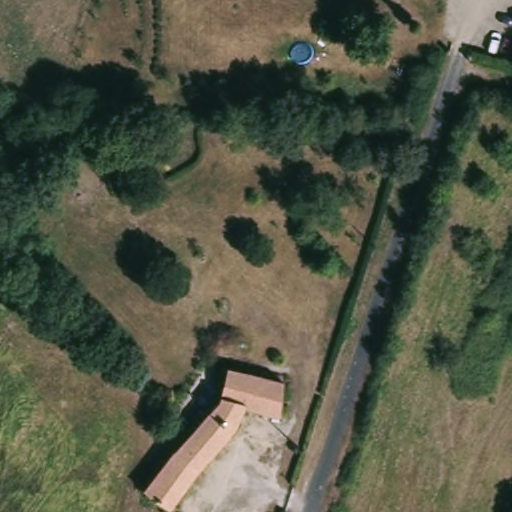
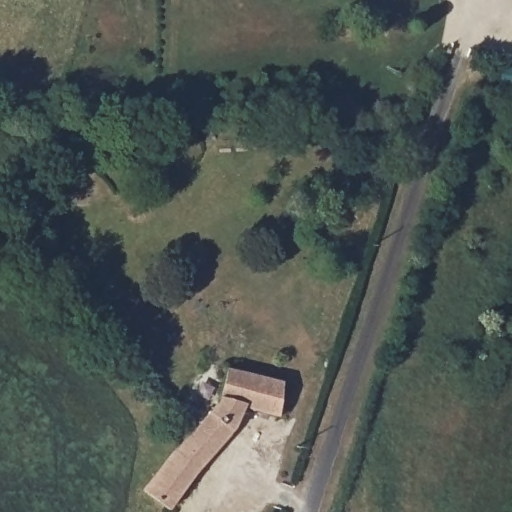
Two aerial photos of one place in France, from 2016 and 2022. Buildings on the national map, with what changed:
unchanged [(290,387),(283,416),(251,407),(172,504),(149,487),(194,427),(215,400),(224,371),(290,387)]

